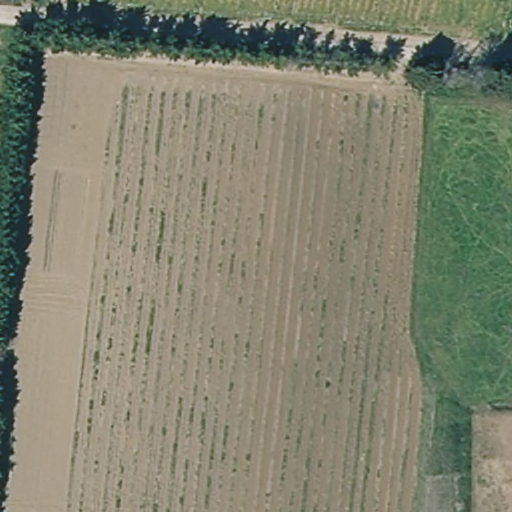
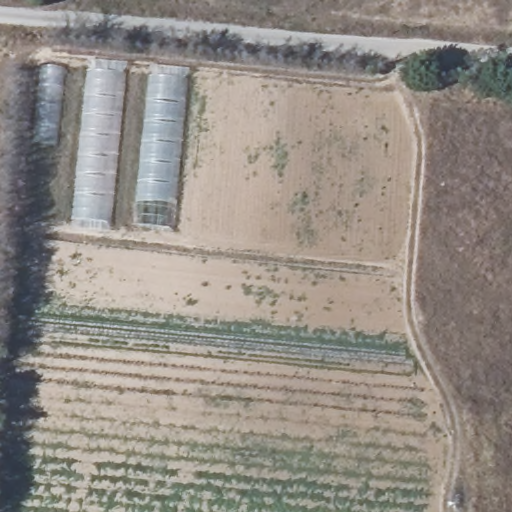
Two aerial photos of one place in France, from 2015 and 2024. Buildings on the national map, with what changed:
new [(72,220),(87,69),(128,74),(113,223),(72,220)]
new [(149,75),(188,79),(175,229),(132,224),(149,75)]

